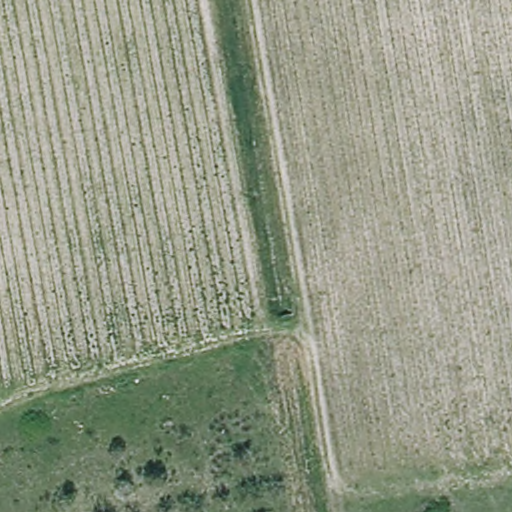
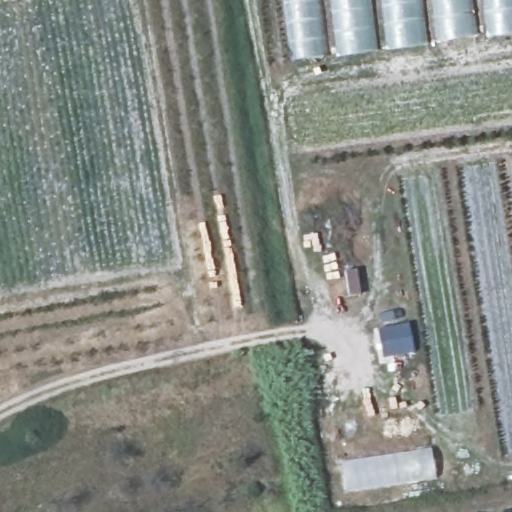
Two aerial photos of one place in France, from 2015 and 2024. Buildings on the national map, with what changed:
new [(284,0),(512,0),(512,31),(292,59),(284,0)]
new [(344,494),(340,464),(430,448),(434,479),(344,494)]

